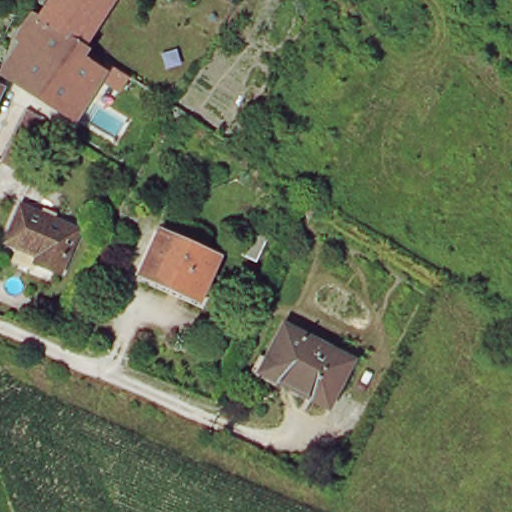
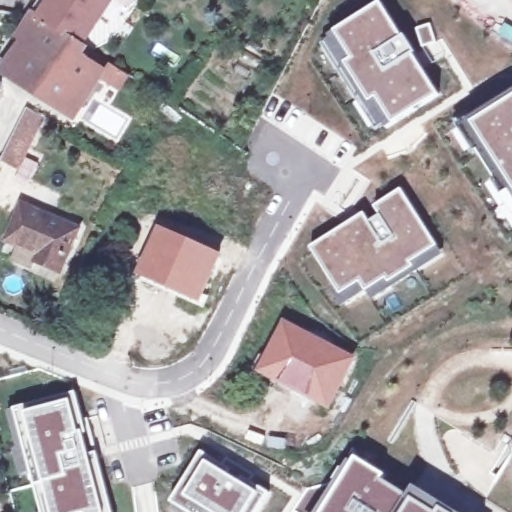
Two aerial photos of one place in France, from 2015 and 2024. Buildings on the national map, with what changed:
unchanged [(41,15),(31,9),(37,0),(54,0),(50,6),(56,9),(62,0),(119,0),(92,49),(84,43),(41,15)]
new [(319,43),(381,2),(451,110),(436,120),(444,133),(387,171),(311,59),(319,43)]
unchanged [(0,14),(0,3),(7,4),(4,15),(0,14)]
unchanged [(88,56),(108,70),(78,118),(13,80),(39,34),(34,29),(39,20),(41,15),(84,43),(92,49),(88,56)]
unchanged [(0,103),(0,91),(4,94),(0,103)]
new [(512,190),(467,120),(512,93),(512,190)]
unchanged [(0,161),(0,150),(25,104),(41,112),(13,166),(0,161)]
new [(402,188),(444,253),(389,285),(386,281),(364,294),(359,285),(341,297),(310,247),(402,188)]
unchanged [(79,229),(63,272),(38,260),(40,253),(9,238),(24,207),(79,229)]
unchanged [(143,270),(160,234),(215,259),(196,298),(143,270)]
unchanged [(332,401),(267,367),(284,333),(350,367),(332,401)]
new [(31,471),(34,470),(28,448),(16,451),(14,442),(26,438),(18,409),(15,400),(71,386),(74,394),(84,433),(83,434),(88,456),(95,454),(110,512),(43,512),(31,471)]
new [(255,512),(193,512),(173,500),(199,457),(266,494),(255,512)]
new [(359,464),(442,512),(325,512),(359,464)]

